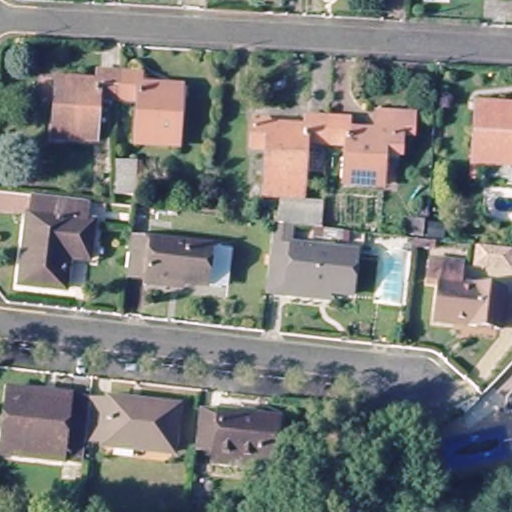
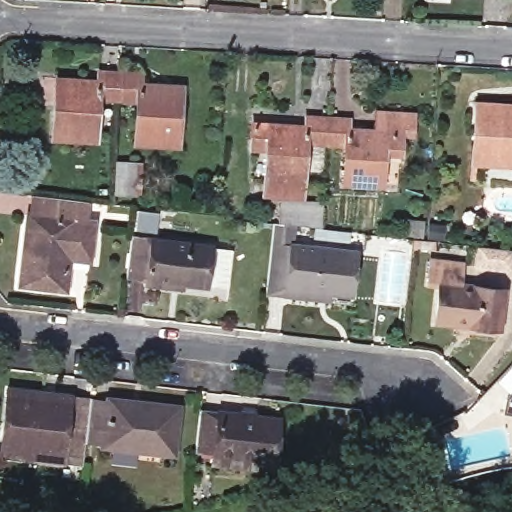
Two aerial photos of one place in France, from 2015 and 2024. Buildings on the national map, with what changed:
unchanged [(99,72),(119,74),(117,104),(97,102),(94,141),(54,137),(57,86),(58,79),(73,80),(97,82),(99,72)]
unchanged [(142,84),(166,86),(182,87),(182,94),(178,147),(137,143),(139,106),(117,104),(119,74),(142,75),(142,84)]
unchanged [(348,116),(348,126),(375,127),(376,107),(413,109),(412,131),(403,131),(402,149),(383,148),(382,181),(342,177),(344,141),(326,140),(327,114),(348,116)]
unchanged [(479,169),(476,169),(480,116),(480,107),(496,109),(512,110),(512,171),(486,170),(484,186),(478,186),(479,169)]
unchanged [(326,140),(305,138),(301,194),(263,191),(267,145),(249,143),(251,121),(306,124),(307,112),(327,114),(326,140)]
unchanged [(136,163),(134,194),(113,192),(115,162),(136,163)]
unchanged [(75,262),(70,294),(25,288),(32,222),(27,221),(28,199),(40,200),(91,206),(89,226),(97,227),(95,250),(93,265),(75,262)]
unchanged [(289,294),(267,292),(276,217),(277,217),(280,200),(322,204),(321,222),(291,219),(288,242),(357,249),(352,293),(331,291),(330,298),(289,294)]
unchanged [(428,240),(413,239),(406,237),(408,219),(428,220),(428,240)]
unchanged [(145,290),(146,281),(127,279),(132,237),(211,246),(207,288),(183,286),(182,293),(145,290)]
unchanged [(512,268),(477,265),(480,245),(512,249),(512,268)]
unchanged [(444,285),(432,283),(436,262),(465,266),(462,285),(507,291),(502,331),(440,322),(444,285)]
unchanged [(4,445),(10,391),(95,400),(91,443),(88,466),(41,461),(3,457),(4,445)]
unchanged [(95,400),(114,402),(114,400),(180,407),(175,452),(91,443),(95,400)]
unchanged [(511,407),(512,405),(512,419),(497,416),(500,405),(511,407)]
unchanged [(212,462),(213,455),(214,452),(196,451),(200,408),(278,417),(276,440),(272,462),(259,461),(254,460),(252,467),(212,462)]

